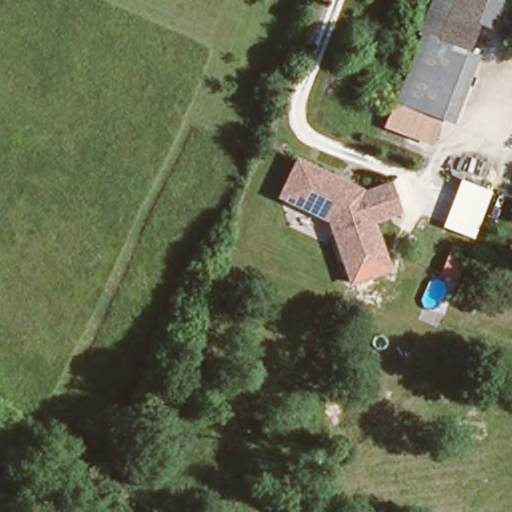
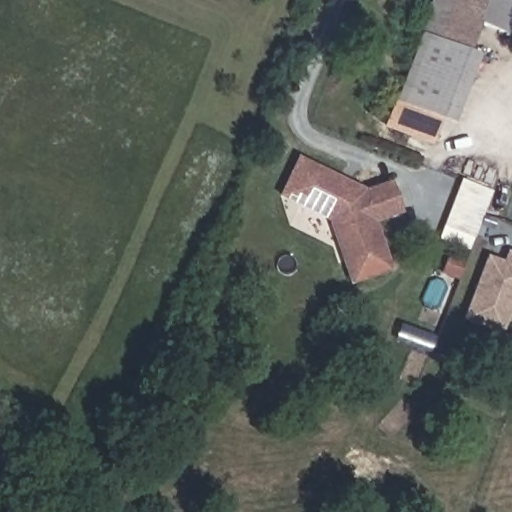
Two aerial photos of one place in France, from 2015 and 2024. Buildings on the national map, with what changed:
unchanged [(435,116),(386,97),(427,0),(443,0),(429,33),(456,45),(471,52),(443,120),(435,116)]
unchanged [(496,27),(469,15),(456,45),(429,33),(443,0),(508,0),(496,27)]
unchanged [(425,142),(376,124),(386,97),(435,116),(425,142)]
unchanged [(377,248),(338,265),(321,220),(296,210),(308,175),(342,186),(345,192),(357,197),(356,194),(382,182),(394,210),(365,222),(377,248)]
unchanged [(478,236),(442,227),(461,176),(492,190),(478,236)]
new [(512,254),(512,305),(500,335),(461,320),(485,256),(500,262),(504,251),(512,254)]

